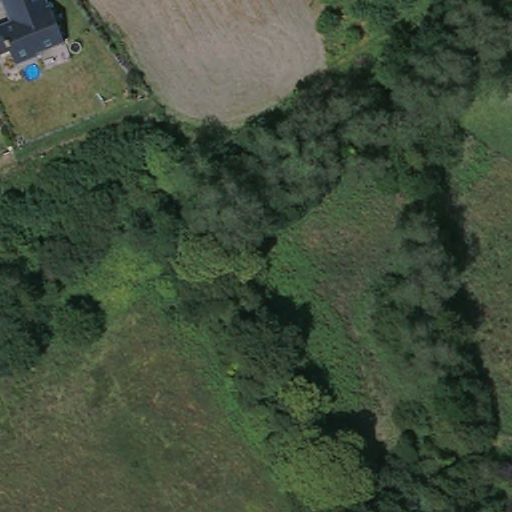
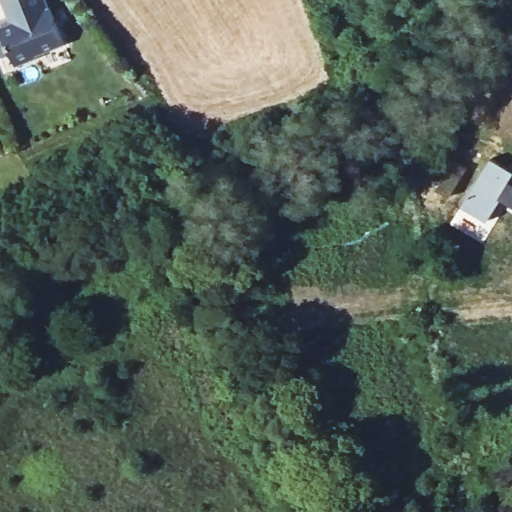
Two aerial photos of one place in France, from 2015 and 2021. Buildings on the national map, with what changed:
unchanged [(0,0),(44,0),(45,0),(59,34),(32,44),(29,37),(7,46),(6,43),(0,46),(0,17),(6,14),(0,0)]
new [(489,161),(512,174),(512,208),(500,201),(487,224),(461,209),(489,161)]
new [(452,164),(465,172),(449,200),(436,193),(452,164)]

